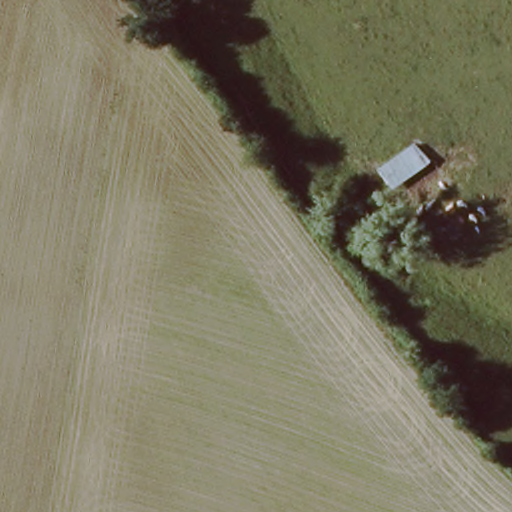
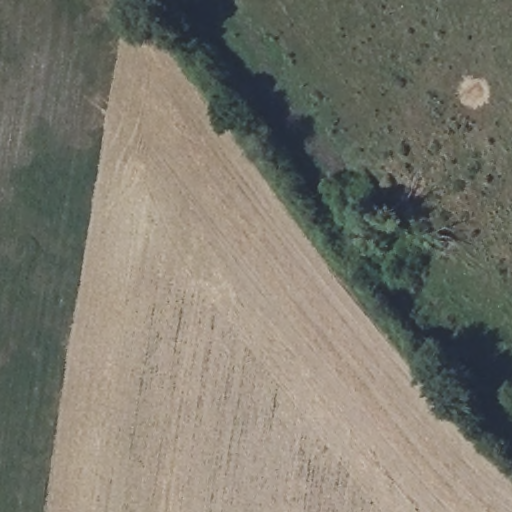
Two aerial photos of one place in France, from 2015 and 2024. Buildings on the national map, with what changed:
demolished [(429,165),(391,191),(376,170),(412,144),(429,165)]

